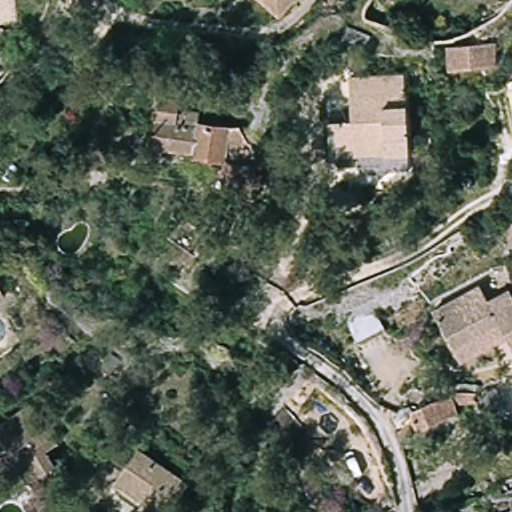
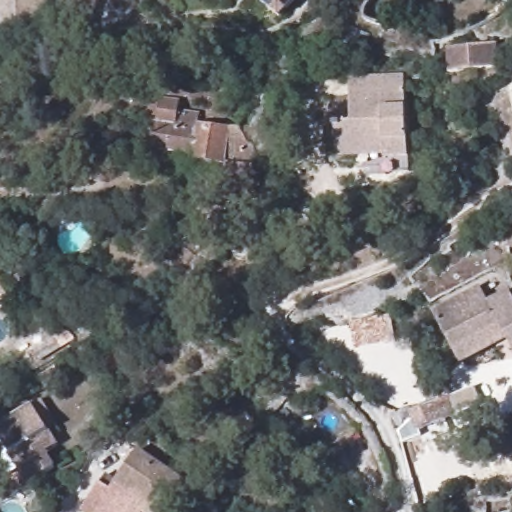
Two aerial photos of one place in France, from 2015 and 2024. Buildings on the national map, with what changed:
unchanged [(219,0),(225,0),(223,3),(219,0)]
unchanged [(239,0),(290,0),(269,25),(239,0)]
unchanged [(372,34),(362,59),(337,48),(346,27),(351,27),(372,34)]
unchanged [(497,50),(497,70),(445,73),(445,53),(497,50)]
unchanged [(406,154),(336,159),(334,121),(348,120),(346,76),(400,74),(406,154)]
unchanged [(229,169),(189,160),(189,155),(153,147),(160,101),(183,105),(182,114),(206,119),(205,121),(235,130),(229,169)]
unchanged [(250,134),(269,171),(250,200),(226,194),(229,169),(235,130),(250,134)]
unchanged [(175,253),(187,239),(173,228),(187,213),(212,230),(186,260),(175,253)]
unchanged [(474,290),(482,305),(505,293),(512,307),(512,363),(503,344),(456,368),(428,314),(474,290)]
unchanged [(365,351),(353,324),(379,308),(393,335),(365,351)]
unchanged [(449,392),(451,383),(479,384),(480,393),(497,386),(505,403),(486,414),(479,397),(477,398),(477,406),(455,406),(457,414),(417,431),(409,411),(449,392)]
unchanged [(0,455),(0,423),(36,402),(60,437),(47,446),(58,463),(34,478),(14,448),(1,456),(0,455)]
unchanged [(140,451),(191,486),(173,512),(141,512),(145,507),(117,484),(140,451)]
new [(104,474),(117,484),(145,507),(141,512),(80,512),(104,474)]

